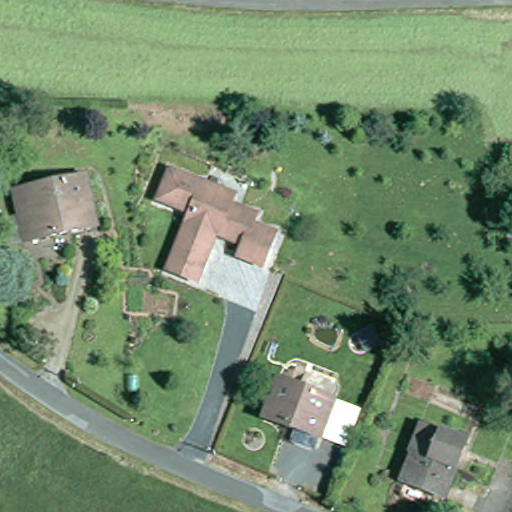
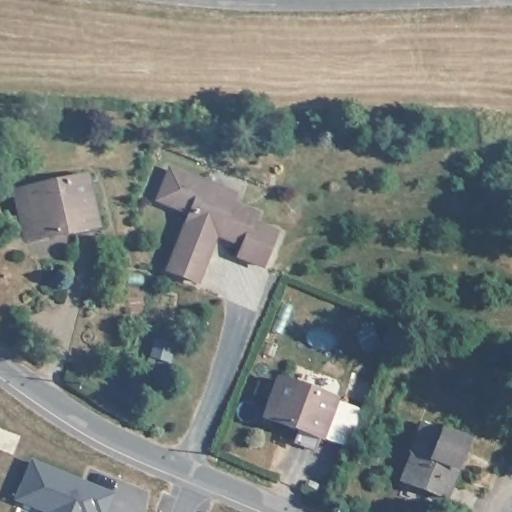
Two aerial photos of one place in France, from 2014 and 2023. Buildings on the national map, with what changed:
unchanged [(260,220),(256,229),(278,238),(265,271),(241,262),(245,250),(213,237),(210,246),(214,248),(199,288),(170,276),(193,217),(160,205),(172,175),(206,188),(237,200),(233,210),(258,220),(260,220)]
unchanged [(19,195),(83,181),(93,232),(29,245),(19,195)]
unchanged [(322,438),(265,417),(280,380),(336,400),(322,438)]
unchanged [(405,485),(416,456),(413,455),(423,430),(443,438),(444,436),(468,446),(446,502),(405,485)]
new [(33,462),(113,495),(107,512),(49,512),(18,500),(33,462)]

